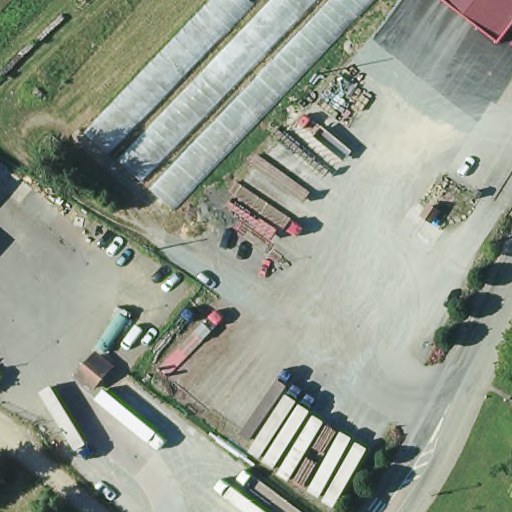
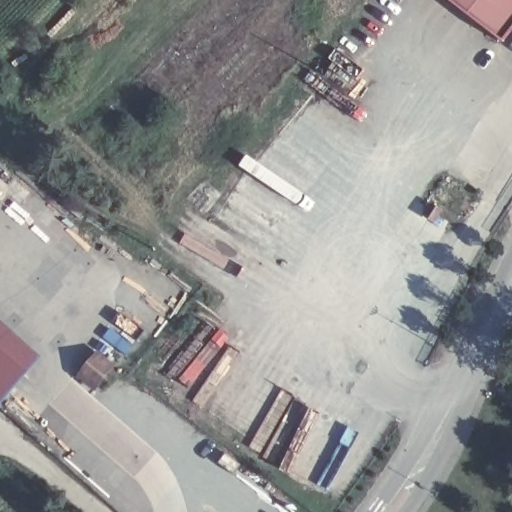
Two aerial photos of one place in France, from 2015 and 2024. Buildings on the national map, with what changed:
demolished [(177,211),(85,129),(213,0),(378,0),(177,211)]
unchanged [(512,24),(499,42),(444,0),(512,0),(512,24)]
new [(40,356),(0,402),(0,321),(40,356)]
unchanged [(78,375),(97,354),(110,365),(92,386),(78,375)]

